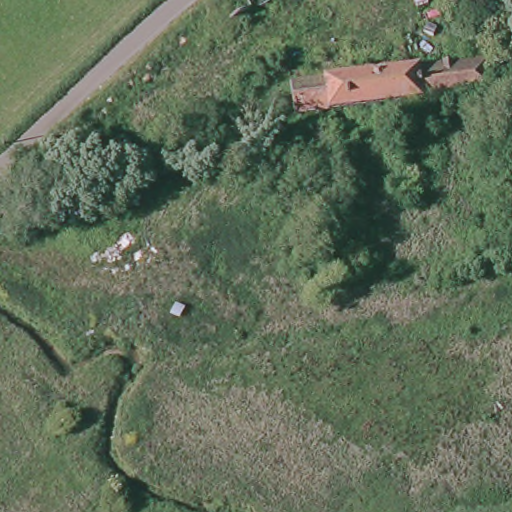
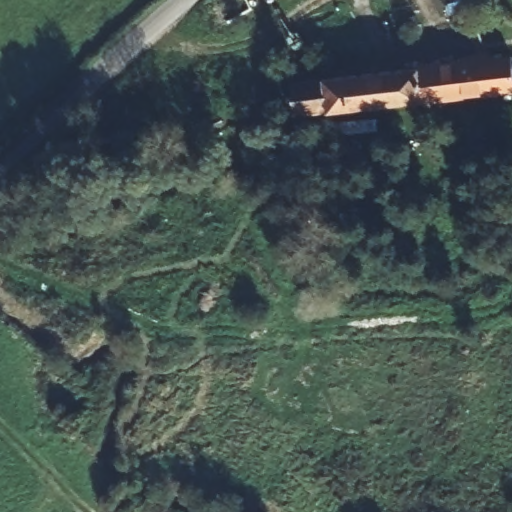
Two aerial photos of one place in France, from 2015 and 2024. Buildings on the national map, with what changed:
unchanged [(484,44),(481,36),(512,24),(512,34),(484,44)]
unchanged [(287,77),(483,52),(487,86),(477,87),(290,113),(290,108),(287,83),(287,77)]

